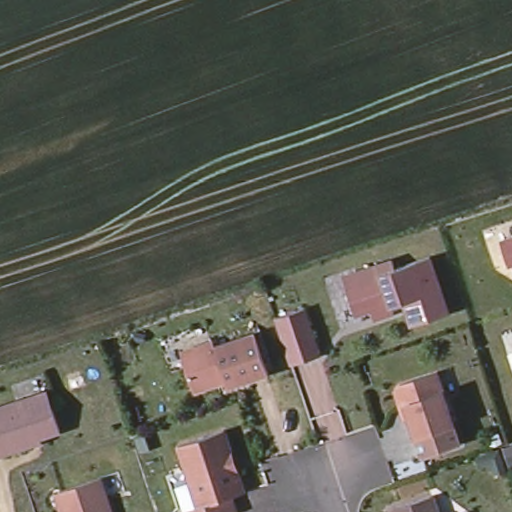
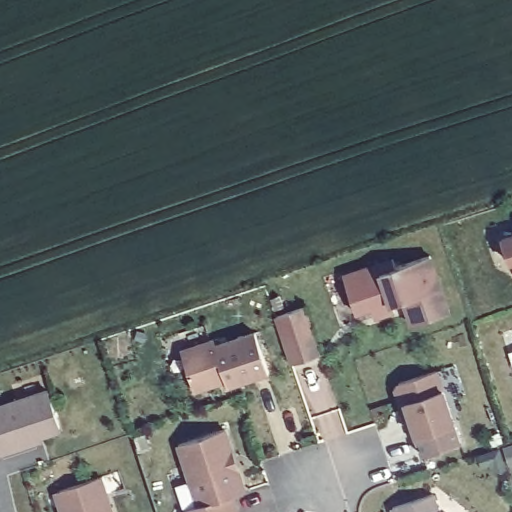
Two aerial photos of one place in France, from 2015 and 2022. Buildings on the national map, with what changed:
unchanged [(512,253),(506,236),(512,234),(512,253)]
unchanged [(397,254),(401,263),(435,252),(452,302),(417,313),(407,291),(396,295),(397,300),(379,306),(375,297),(359,303),(349,271),(397,254)]
unchanged [(305,308),(320,355),(305,360),(292,365),(276,317),(290,312),(305,308)]
unchanged [(213,340),(215,345),(254,332),(268,373),(229,387),(225,381),(194,391),(180,351),(213,340)]
unchanged [(429,450),(422,431),(415,410),(410,412),(404,395),(400,385),(404,377),(437,366),(455,418),(462,437),(429,450)]
unchanged [(51,383),(65,425),(40,433),(40,436),(0,450),(0,401),(51,383)]
unchanged [(205,505),(184,444),(229,428),(237,451),(243,468),(250,491),(237,496),(242,512),(190,512),(189,510),(205,505)]
unchanged [(69,512),(69,510),(60,487),(66,485),(105,472),(118,512),(69,512)]
unchanged [(438,488),(446,512),(401,512),(397,502),(438,488)]
unchanged [(453,512),(448,512),(452,511),(453,512)]

